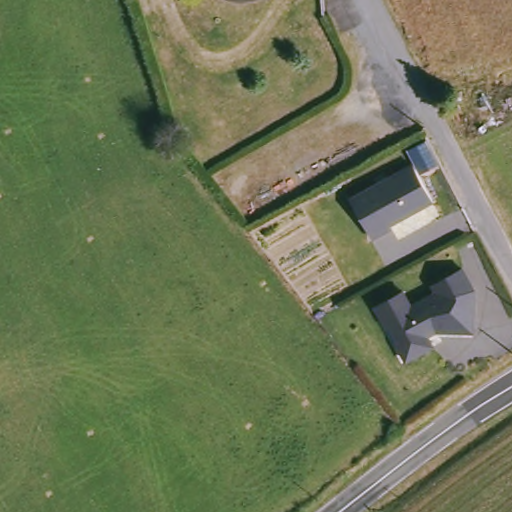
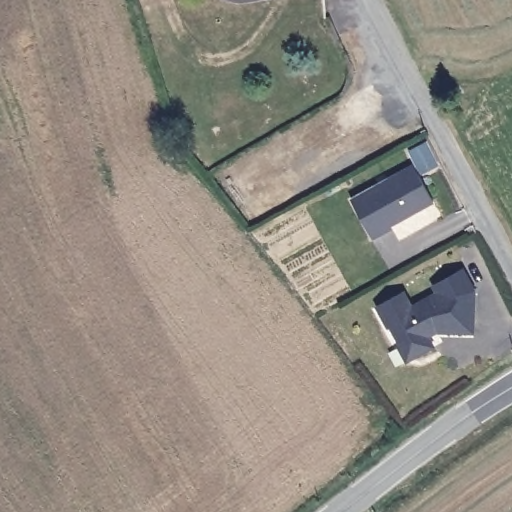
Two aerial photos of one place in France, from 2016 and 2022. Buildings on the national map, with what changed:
unchanged [(415,165),(434,201),(390,223),(390,227),(371,237),(351,198),(415,165)]
unchanged [(476,292),(474,334),(436,332),(435,329),(426,333),(433,347),(415,356),(408,342),(402,345),(392,324),(388,326),(377,305),(405,291),(412,305),(438,293),(434,286),(465,270),(476,292)]

